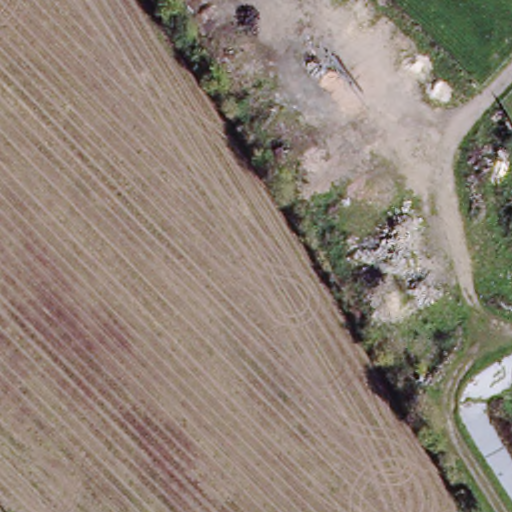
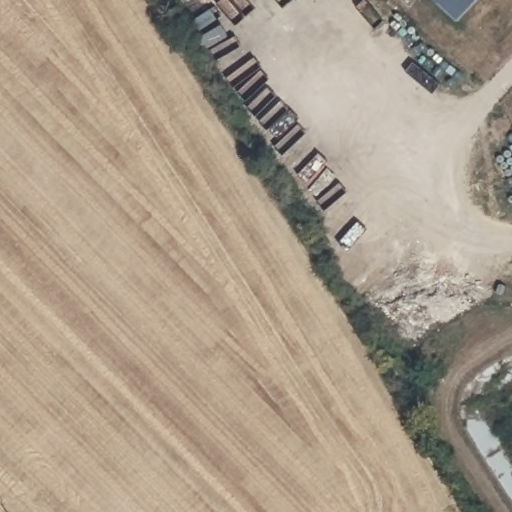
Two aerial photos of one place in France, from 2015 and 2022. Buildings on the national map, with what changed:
new [(461,22),(438,0),(481,0),(461,22)]

